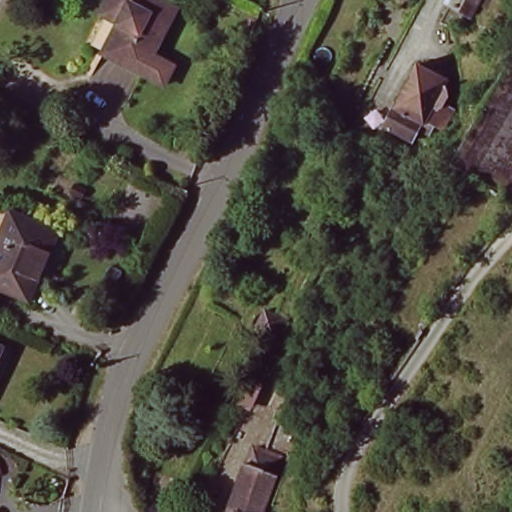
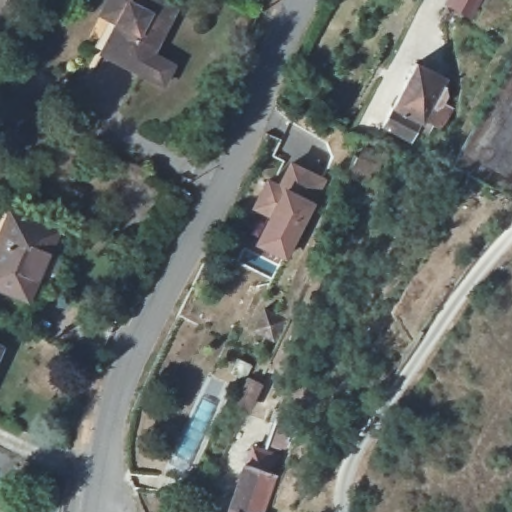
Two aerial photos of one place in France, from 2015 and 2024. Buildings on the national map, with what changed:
unchanged [(100,56),(115,27),(96,19),(102,8),(106,0),(156,0),(176,10),(175,13),(141,78),(100,56)]
unchanged [(472,18),(440,1),(440,0),(482,0),(472,18)]
unchanged [(451,83),(432,129),(422,124),(414,142),(382,128),(411,66),(451,83)]
unchanged [(329,112),(339,91),(362,102),(353,122),(329,112)]
new [(328,181),(288,264),(254,250),(270,219),(252,211),(267,179),(277,183),(288,161),(328,181)]
unchanged [(0,244),(16,212),(61,235),(29,303),(0,290),(0,244)]
unchanged [(281,476),(267,512),(224,512),(244,461),(281,476)]

